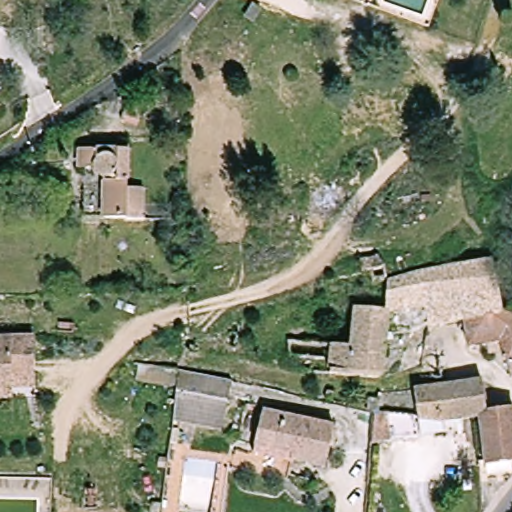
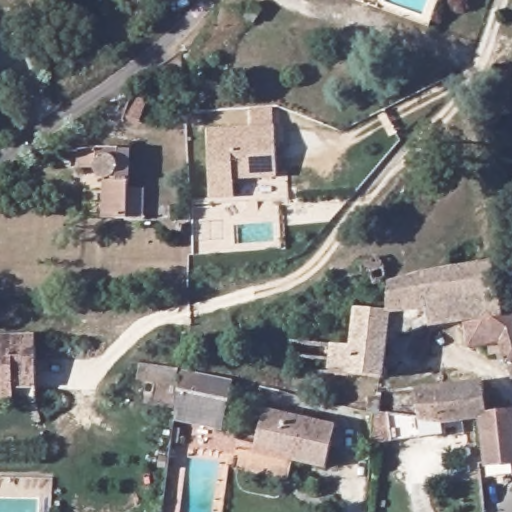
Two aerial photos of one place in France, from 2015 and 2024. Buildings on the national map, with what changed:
new [(207,129),(251,125),(251,106),(273,105),(275,125),(278,178),(234,182),(235,199),(211,200),(207,129)]
unchanged [(106,218),(105,182),(98,172),(81,172),(79,150),(129,149),(126,190),(148,189),(147,220),(106,218)]
new [(96,198),(99,226),(79,229),(78,200),(96,198)]
unchanged [(434,322),(392,343),(385,349),(390,310),(393,286),(461,271),(509,266),(509,289),(509,319),(467,319),(434,322)]
unchanged [(352,347),(357,307),(390,310),(385,349),(392,343),(389,379),(326,372),(331,344),(352,347)]
unchanged [(503,371),(505,347),(467,349),(467,319),(509,319),(512,319),(512,370),(503,371)]
unchanged [(35,393),(0,393),(0,336),(39,335),(35,393)]
unchanged [(184,381),(228,381),(224,423),(180,423),(184,381)]
unchanged [(415,431),(418,409),(420,381),(496,381),(494,410),(447,409),(445,431),(415,431)]
unchanged [(490,462),(494,410),(512,410),(512,462),(490,462)]
unchanged [(334,421),(330,463),(255,461),(259,420),(334,421)]

